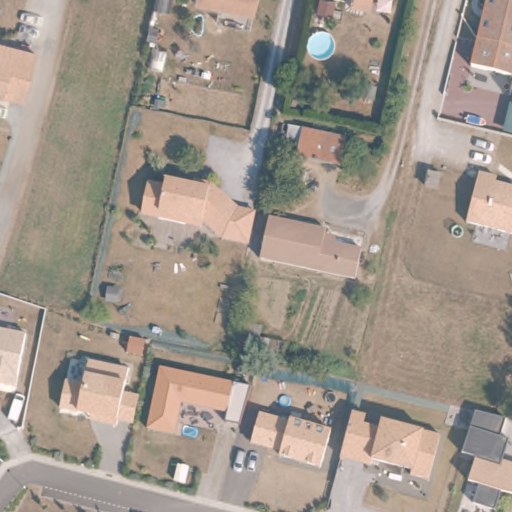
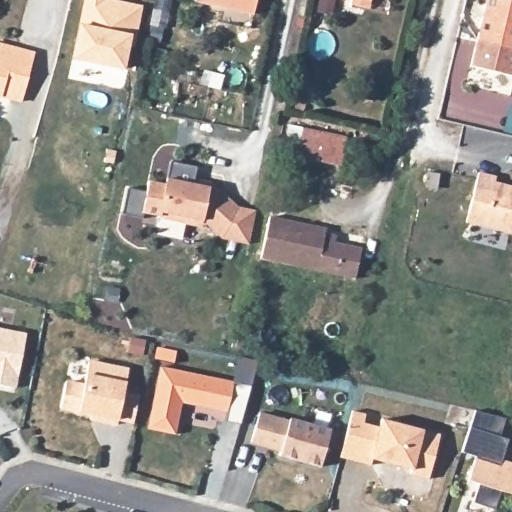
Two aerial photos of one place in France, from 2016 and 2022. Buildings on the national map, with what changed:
new [(133,47),(128,46),(123,70),(70,60),(77,25),(82,0),(110,0),(141,6),(133,47)]
unchanged [(198,1),(198,0),(259,0),(255,14),(198,1)]
unchanged [(471,71),(489,0),(494,0),(512,4),(512,81),(471,71)]
unchanged [(12,46),(42,55),(30,104),(0,96),(0,55),(10,57),(12,46)]
new [(502,128),(509,101),(512,102),(512,130),(502,128)]
unchanged [(340,135),(335,165),(292,157),(297,127),(340,135)]
unchanged [(497,176),(496,182),(512,187),(512,237),(501,235),(498,245),(478,240),(481,229),(464,224),(478,172),(497,176)]
unchanged [(255,211),(248,244),(223,239),(216,232),(204,221),(202,229),(187,224),(158,219),(159,216),(143,211),(149,182),(166,185),(167,179),(219,189),(238,207),(241,207),(255,211)]
unchanged [(327,231),(325,242),(363,251),(356,281),(260,260),(270,217),(327,231)]
unchanged [(16,387),(0,383),(0,328),(28,333),(16,387)]
unchanged [(66,379),(83,383),(89,360),(130,368),(124,390),(139,394),(132,423),(114,420),(114,425),(87,420),(90,413),(59,408),(66,379)]
unchanged [(159,366),(249,387),(240,425),(226,425),(226,414),(182,405),(175,436),(144,428),(159,366)]
unchanged [(502,418),(497,436),(506,439),(502,458),(512,462),(512,498),(499,495),(496,512),(470,505),(475,486),(464,483),(472,455),(460,450),(474,410),(502,418)]
unchanged [(329,428),(319,466),(279,457),(280,452),(250,443),(259,411),(329,428)]
unchanged [(365,414),(364,422),(440,432),(430,481),(338,458),(352,411),(365,414)]

